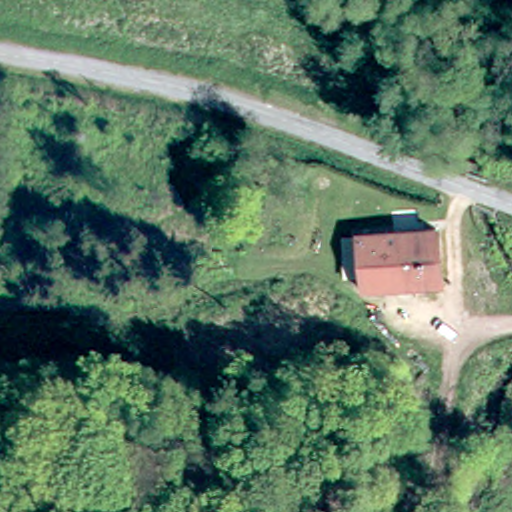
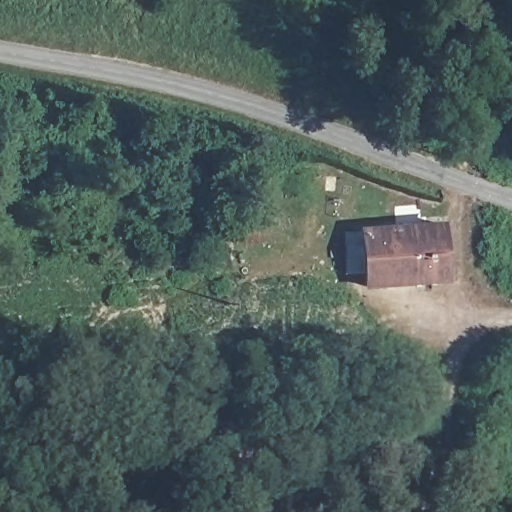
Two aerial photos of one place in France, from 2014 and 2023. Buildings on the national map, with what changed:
unchanged [(370,289),(366,234),(400,231),(435,227),(444,227),(447,282),(370,289)]

